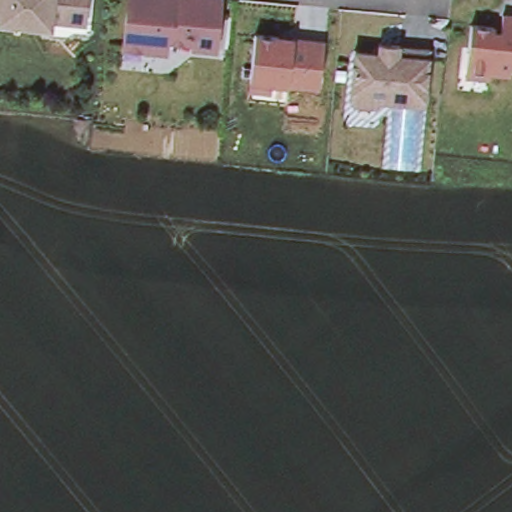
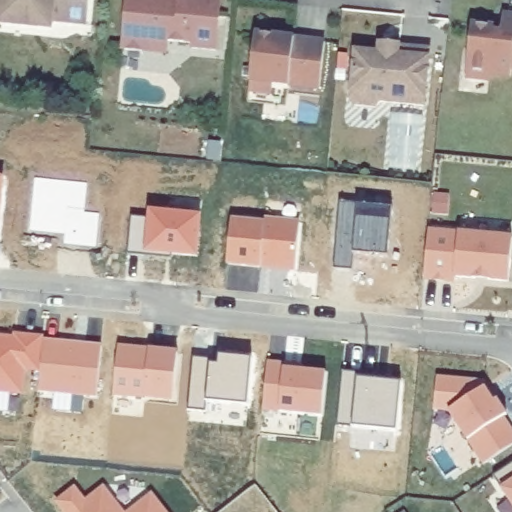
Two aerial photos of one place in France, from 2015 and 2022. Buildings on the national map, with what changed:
unchanged [(53,19),(53,27),(0,22),(0,0),(90,0),(88,23),(53,19)]
unchanged [(128,16),(129,0),(223,0),(218,54),(194,51),(194,46),(169,44),(168,56),(148,55),(124,53),(128,16)]
unchanged [(468,75),(468,69),(473,23),(496,25),(496,30),(503,31),(504,13),(512,13),(512,73),(491,71),(490,78),(468,75)]
unchanged [(250,94),(251,84),(257,37),(326,45),(321,92),(274,86),(273,96),(250,94)]
unchanged [(401,44),(432,48),(426,104),(393,101),(381,100),(376,105),(356,103),(351,96),(356,55),(356,49),(380,51),(381,41),(394,43),(401,43),(401,44)]
unchanged [(426,104),(418,168),(391,165),(393,101),(426,104)]
new [(87,183),(84,214),(98,215),(96,248),(65,245),(65,232),(30,229),(36,179),(87,183)]
new [(0,235),(0,184),(5,184),(0,235)]
new [(391,205),(387,252),(352,249),(351,268),(334,268),(339,199),(391,205)]
new [(133,221),(151,223),(152,216),(203,220),(198,260),(149,255),(149,260),(129,259),(133,221)]
new [(233,224),(266,228),(266,223),(301,227),(297,274),(229,267),(233,224)]
new [(457,280),(457,285),(426,282),(430,234),(512,242),(512,267),(511,285),(490,283),(477,282),(457,280)]
new [(17,339),(45,341),(43,374),(26,373),(24,397),(0,395),(0,340),(17,342),(17,339)]
new [(45,344),(103,349),(99,399),(40,393),(45,344)]
new [(175,404),(115,398),(120,351),(138,353),(151,354),(179,357),(175,404)]
new [(207,357),(207,361),(217,361),(218,352),(249,355),(246,401),(206,399),(205,409),(188,408),(193,357),(207,357)]
new [(286,367),(286,373),(328,377),(324,420),(264,414),(269,366),(286,367)]
new [(304,369),(304,374),(286,373),(286,367),(304,369)]
new [(356,372),(356,375),(399,379),(395,428),(351,423),(351,426),(337,424),(343,369),(356,372)]
new [(435,413),(438,380),(486,384),(498,403),(508,418),(505,420),(512,431),(512,450),(485,468),(450,414),(435,413)]
new [(494,479),(512,468),(512,506),(494,479)]
new [(59,506),(76,493),(87,506),(105,492),(121,512),(64,512),(59,506)]
new [(153,499),(164,512),(136,512),(153,499)]

